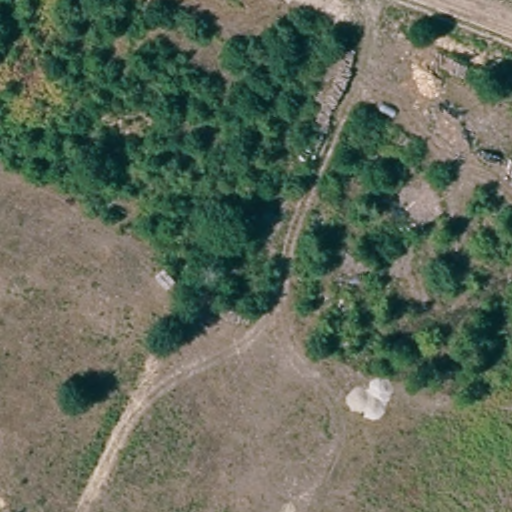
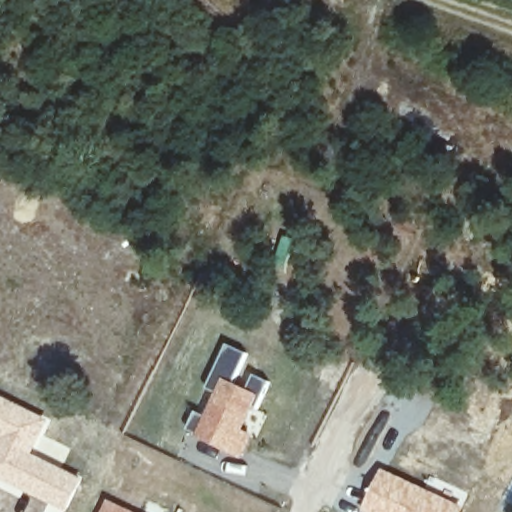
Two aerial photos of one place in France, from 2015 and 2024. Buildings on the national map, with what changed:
new [(206,415),(216,393),(207,389),(226,344),(247,353),(235,383),(247,388),(253,374),(270,382),(256,412),(258,413),(248,429),(256,434),(244,459),(195,437),(196,434),(187,430),(195,411),(206,415)]
new [(44,434),(71,448),(62,467),(83,477),(65,512),(56,512),(50,509),(48,512),(43,512),(47,503),(24,491),(20,498),(0,488),(0,395),(50,420),(44,434)]
new [(382,468),(463,505),(460,512),(362,512),(382,468)]
new [(107,499),(135,512),(102,512),(107,499)]

